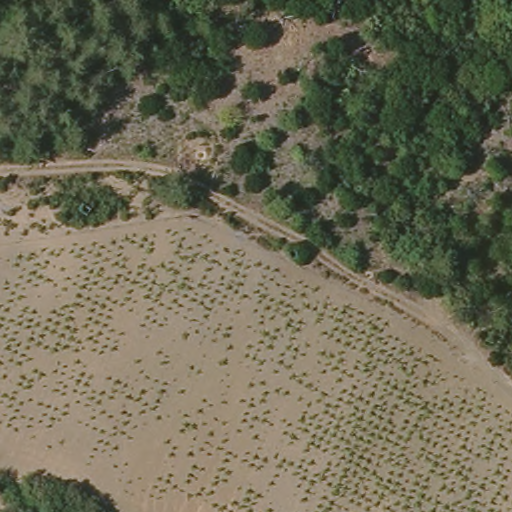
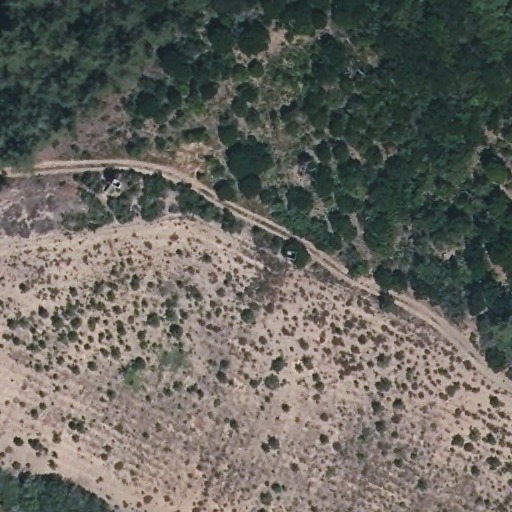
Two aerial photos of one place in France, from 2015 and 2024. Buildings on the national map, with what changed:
[]

